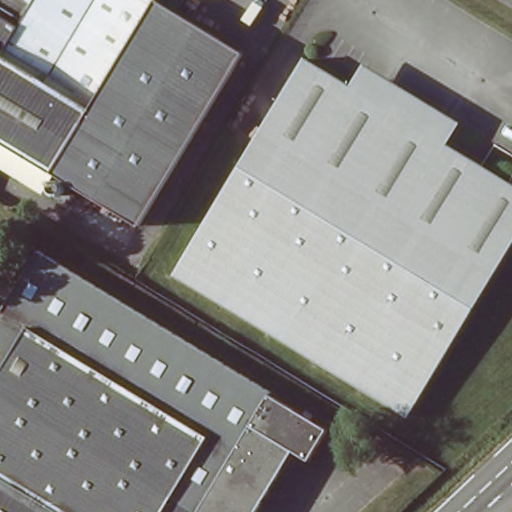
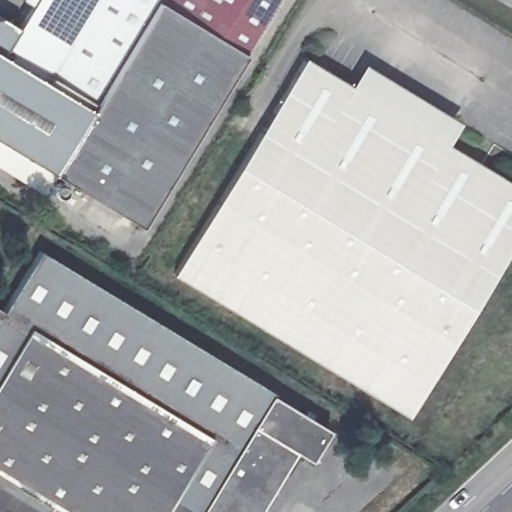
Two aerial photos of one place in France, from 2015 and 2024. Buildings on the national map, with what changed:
unchanged [(265,62),(244,50),(140,220),(0,135),(0,11),(19,22),(33,0),(302,0),(265,62)]
unchanged [(403,415),(170,273),(300,59),(346,86),(442,145),(512,188),(512,237),(403,415)]
unchanged [(267,391),(265,393),(323,428),(304,460),(288,450),(251,512),(0,512),(0,308),(35,250),(267,391)]

